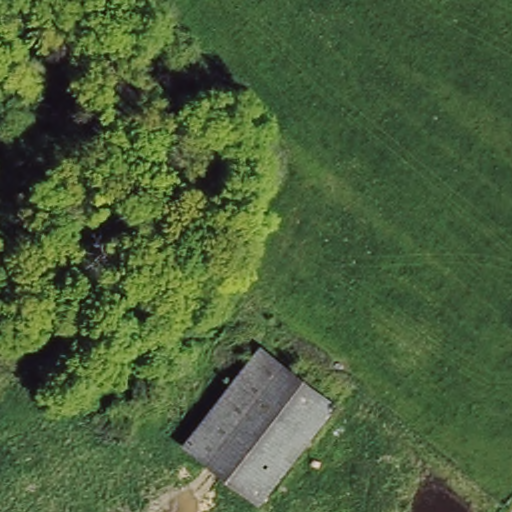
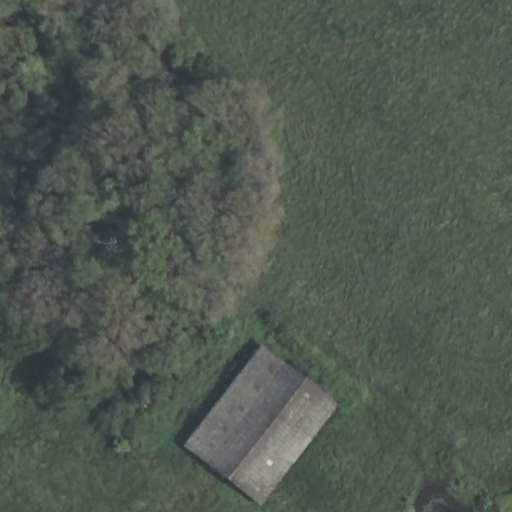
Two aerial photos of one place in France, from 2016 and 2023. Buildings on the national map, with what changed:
unchanged [(341,404),(262,503),(185,441),(261,339),(341,404)]

